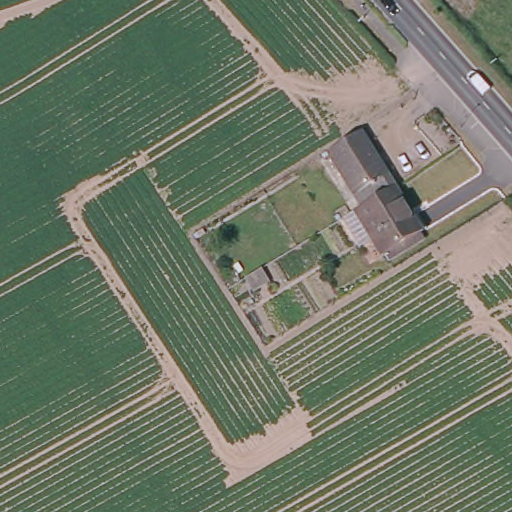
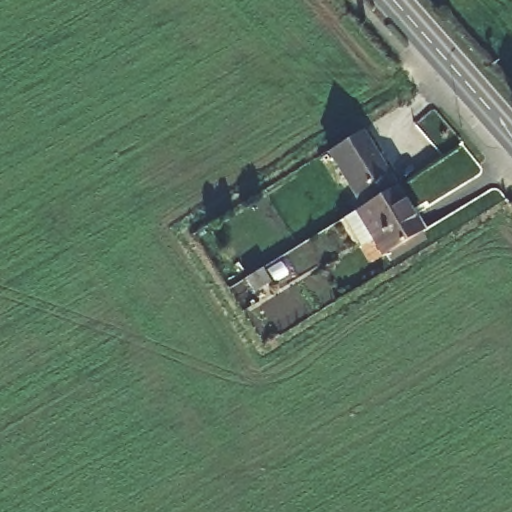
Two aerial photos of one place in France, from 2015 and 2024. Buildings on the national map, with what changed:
unchanged [(335,147),(360,133),(395,187),(362,207),(355,196),(353,197),(326,153),(335,147)]
unchanged [(419,233),(381,256),(371,239),(358,247),(342,219),(362,207),(395,187),(410,212),(423,231),(419,233)]
unchanged [(260,268),(268,282),(251,292),(243,278),(260,268)]

